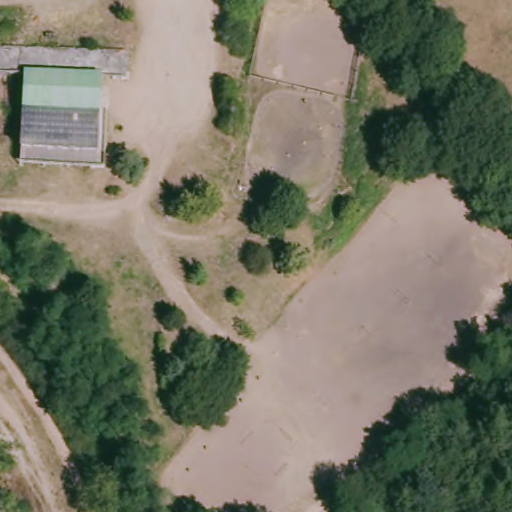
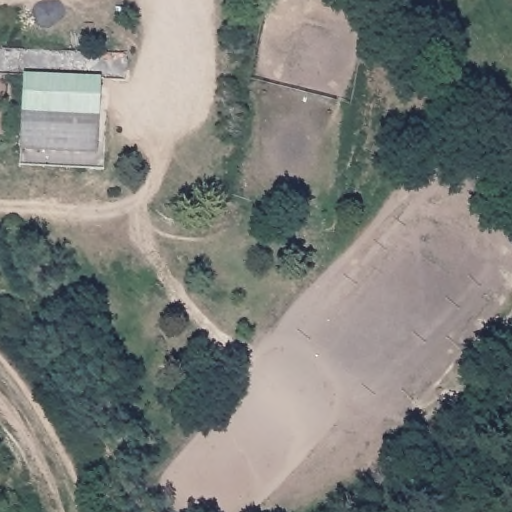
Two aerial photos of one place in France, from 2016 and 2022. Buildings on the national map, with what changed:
unchanged [(105,151),(105,164),(20,162),(20,148),(22,73),(0,71),(0,46),(125,52),(123,76),(100,76),(96,151),(105,151)]

